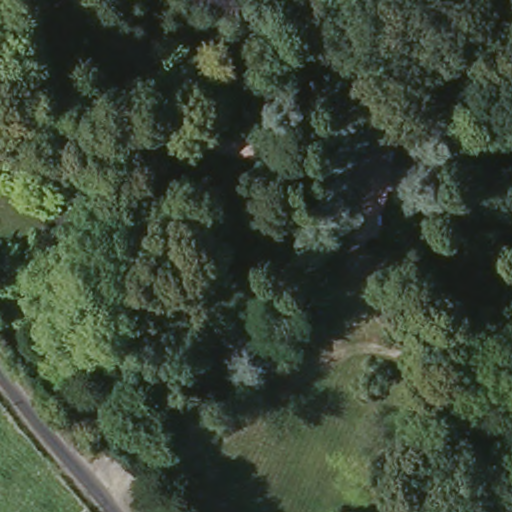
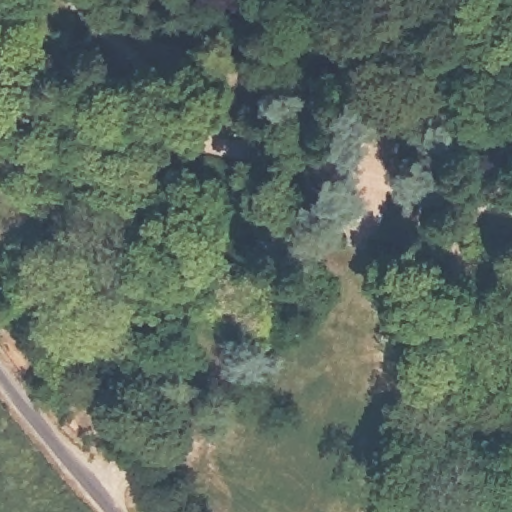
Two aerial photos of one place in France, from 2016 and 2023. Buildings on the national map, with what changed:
unchanged [(120,366),(117,387),(83,383),(85,362),(120,366)]

